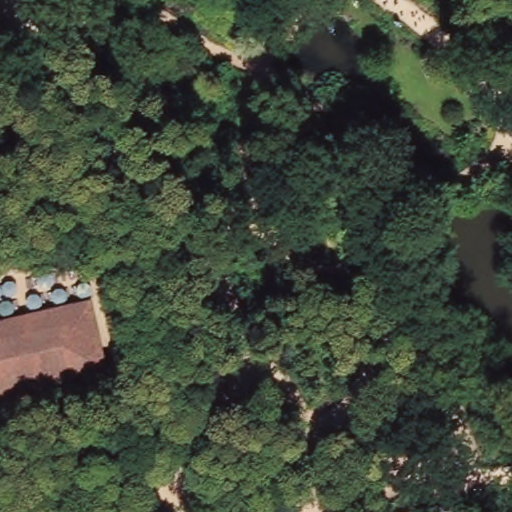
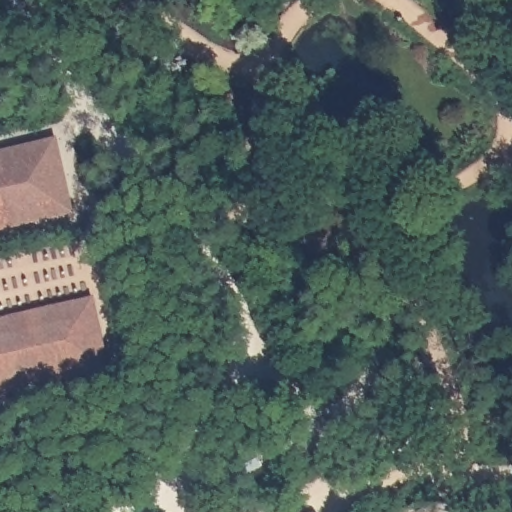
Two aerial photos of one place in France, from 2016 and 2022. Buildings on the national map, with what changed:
new [(57,140),(74,215),(0,231),(0,153),(57,140)]
unchanged [(93,296),(111,370),(0,395),(0,318),(93,296)]

